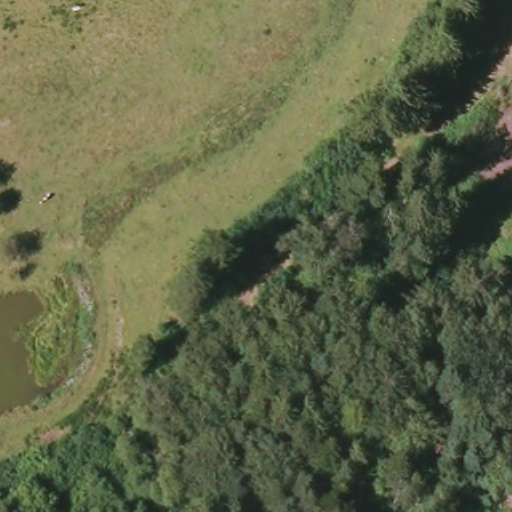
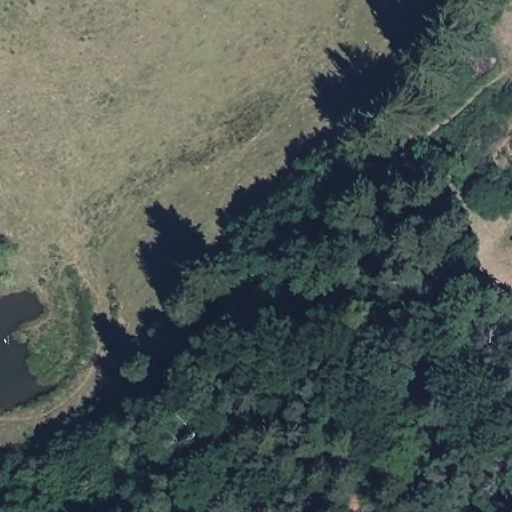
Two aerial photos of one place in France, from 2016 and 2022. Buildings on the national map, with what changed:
unchanged [(510,245),(512,243),(512,247),(510,245)]

